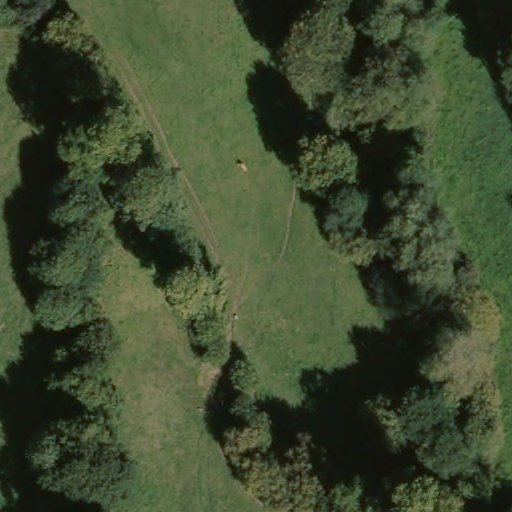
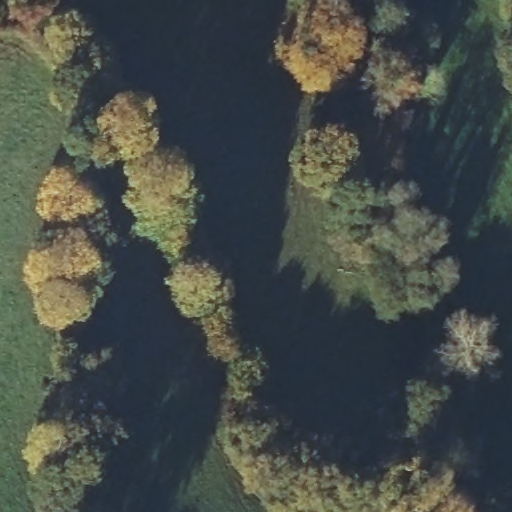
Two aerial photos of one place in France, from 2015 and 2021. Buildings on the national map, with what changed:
[]

